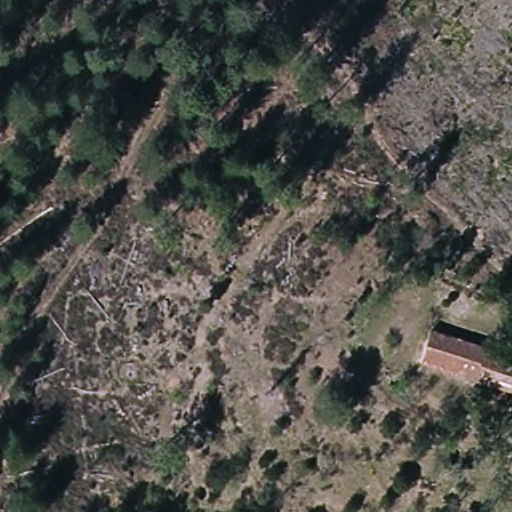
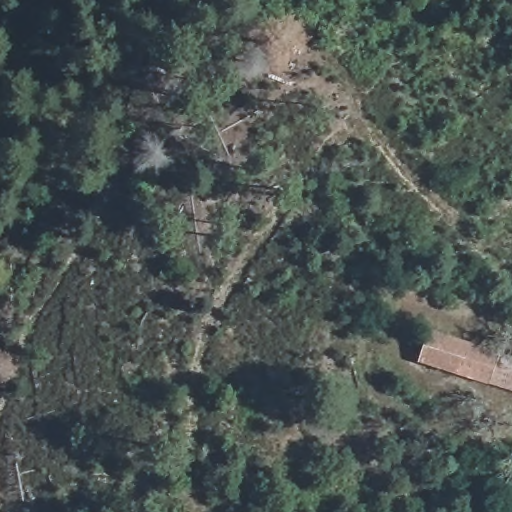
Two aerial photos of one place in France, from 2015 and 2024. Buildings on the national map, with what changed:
unchanged [(420,360),(431,329),(512,355),(512,389),(420,360)]

